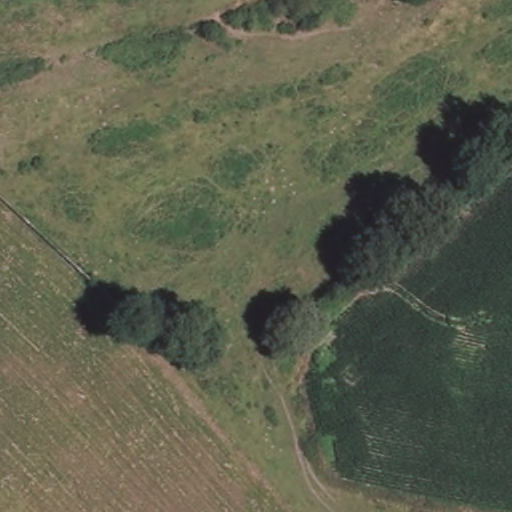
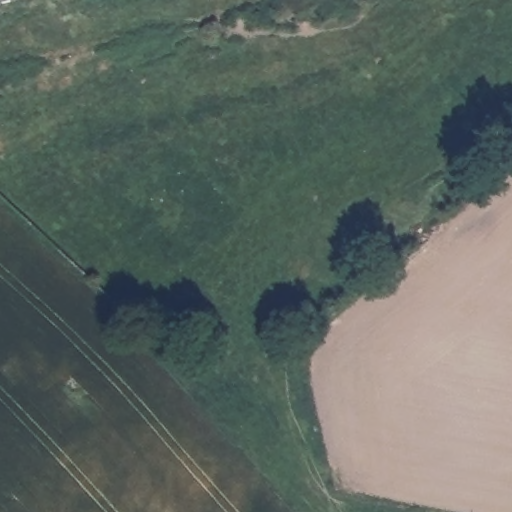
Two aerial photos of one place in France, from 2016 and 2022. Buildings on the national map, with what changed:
[]

